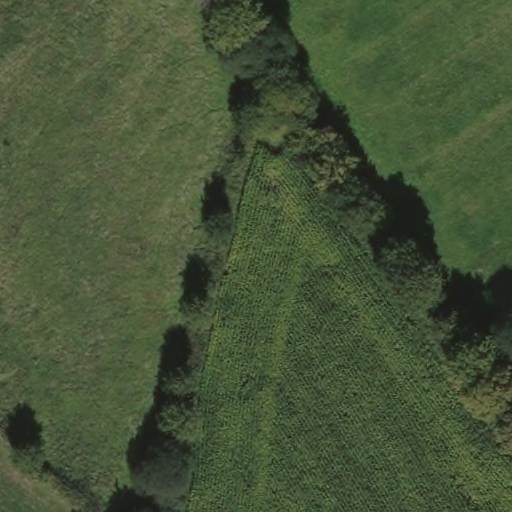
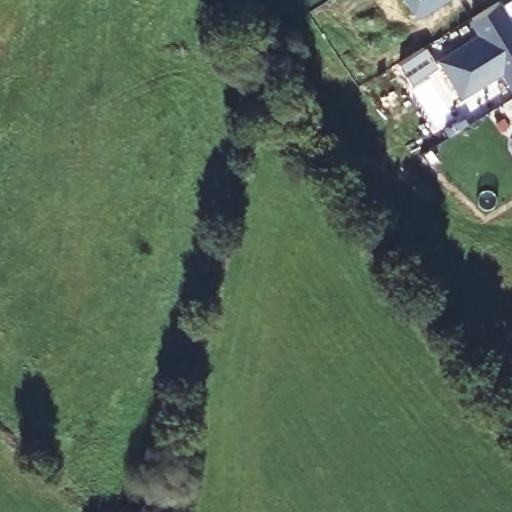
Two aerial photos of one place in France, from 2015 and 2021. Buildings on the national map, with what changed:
new [(483,34),(473,18),(500,1),(512,21),(512,82),(505,70),(464,95),(442,59),(483,34)]

